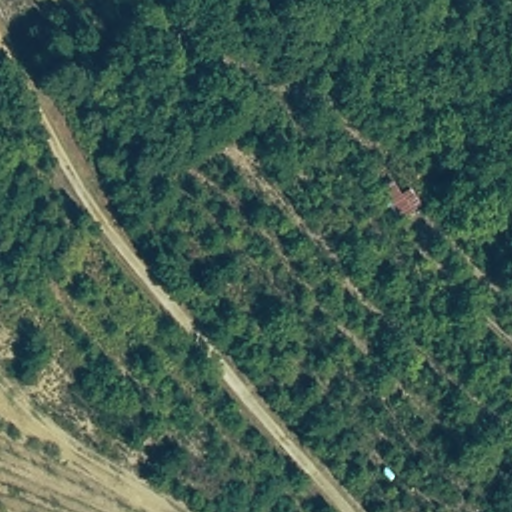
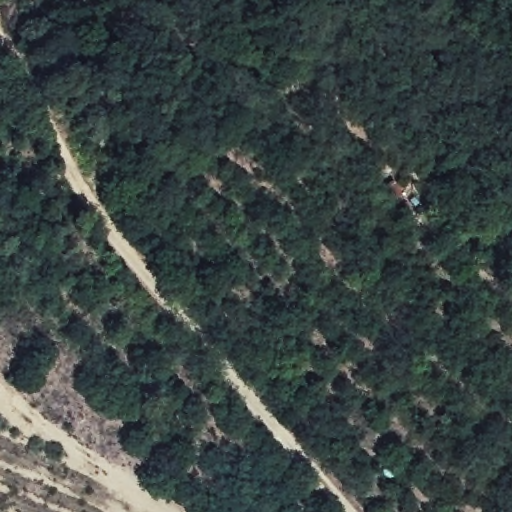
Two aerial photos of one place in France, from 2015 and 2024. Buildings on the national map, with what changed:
unchanged [(420,208),(394,223),(376,194),(392,185),(400,197),(412,192),(420,208)]

